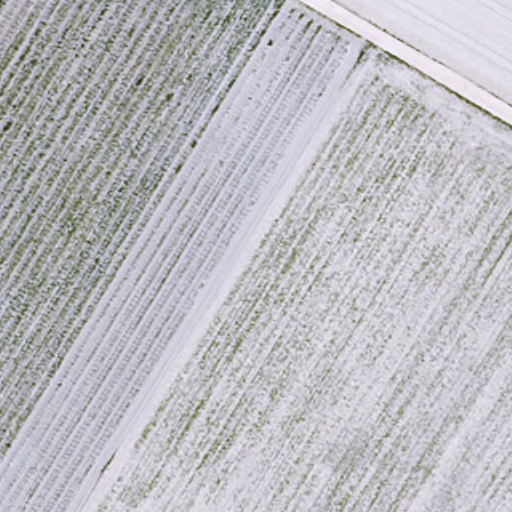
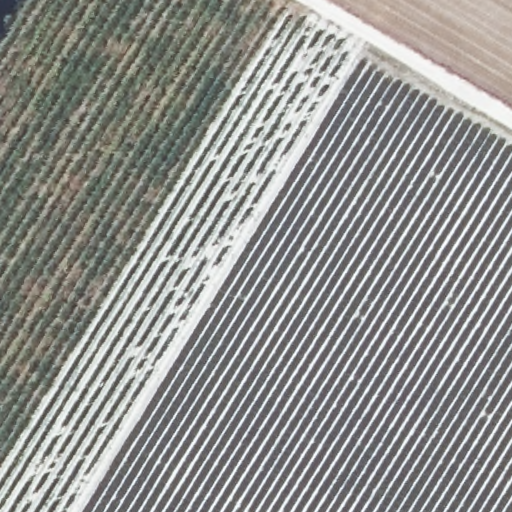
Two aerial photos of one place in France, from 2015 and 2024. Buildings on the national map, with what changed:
[]

